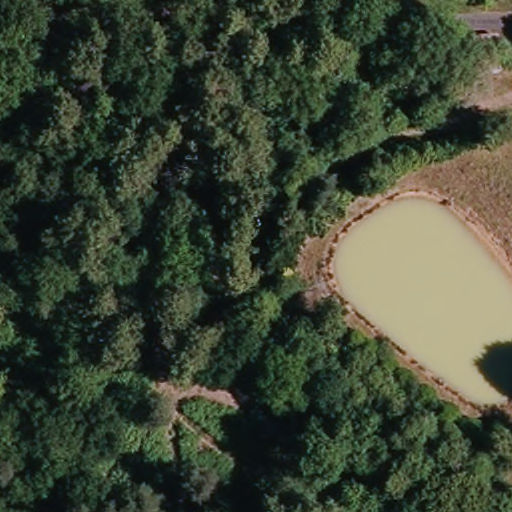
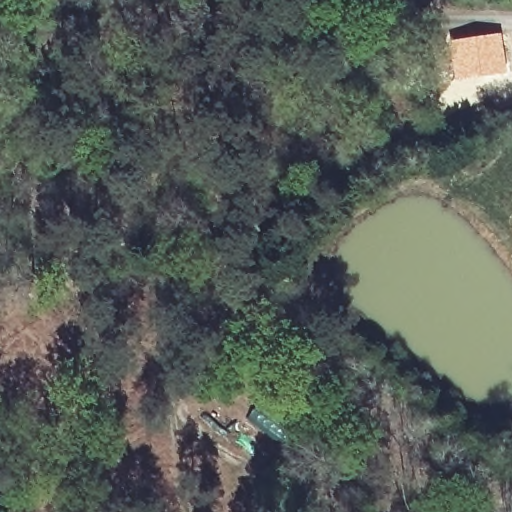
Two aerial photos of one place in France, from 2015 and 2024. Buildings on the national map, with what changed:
new [(501,32),(507,72),(453,80),(447,40),(501,32)]

